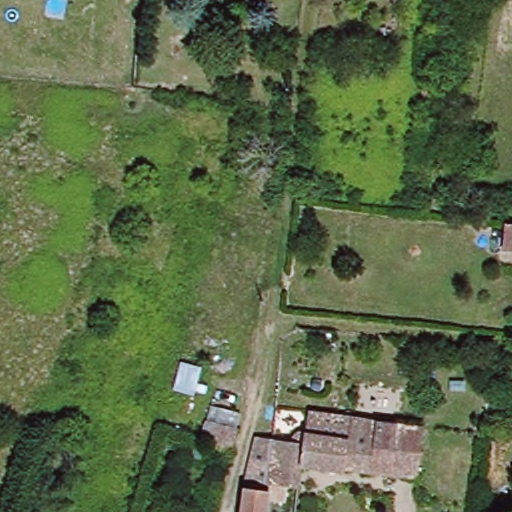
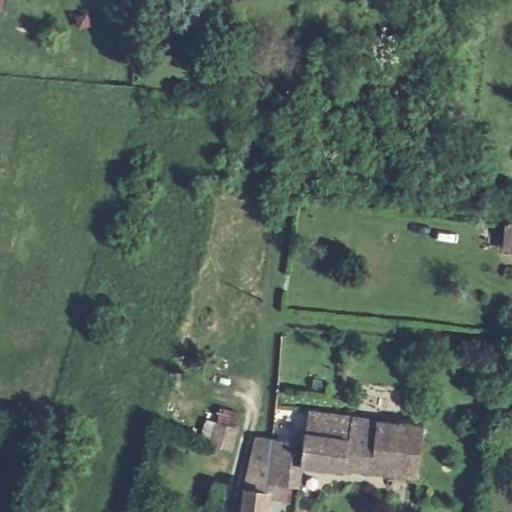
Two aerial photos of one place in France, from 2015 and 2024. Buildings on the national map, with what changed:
unchanged [(512,226),(512,250),(504,249),(508,225),(512,226)]
unchanged [(289,484),(267,481),(273,439),(305,443),(306,433),(309,412),(318,413),(420,428),(415,480),(344,472),(344,473),(300,467),(298,485),(289,484)]
unchanged [(230,451),(209,443),(199,440),(208,418),(217,421),(237,428),(230,451)]
unchanged [(267,493),(269,493),(267,512),(243,512),(245,490),(259,437),(273,439),(267,481),(267,493)]
unchanged [(381,497),(380,509),(364,508),(364,504),(359,503),(360,495),(381,497)]

